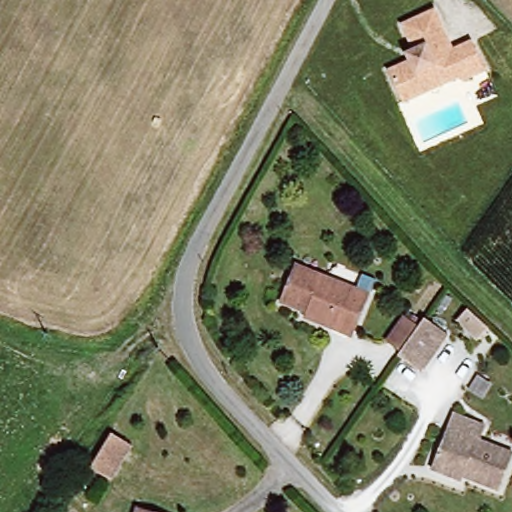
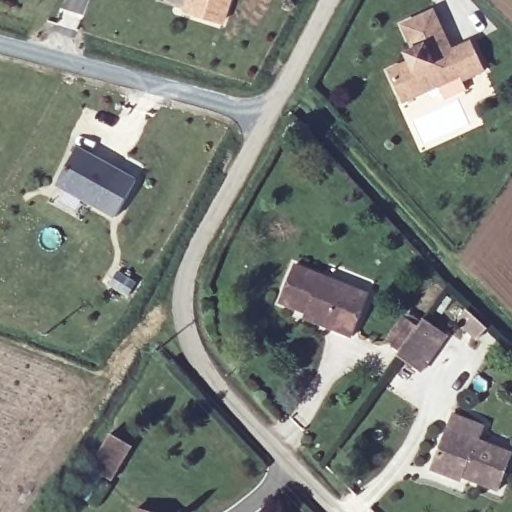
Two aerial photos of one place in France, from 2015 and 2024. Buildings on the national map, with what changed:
new [(180,11),(183,0),(230,0),(223,22),(180,11)]
unchanged [(460,76),(402,103),(388,73),(413,63),(416,54),(403,26),(435,13),(452,51),(472,42),(484,71),(462,81),(460,76)]
new [(137,179),(117,217),(56,185),(77,146),(137,179)]
unchanged [(326,320),(328,316),(284,299),(297,261),(374,292),(358,333),(326,320)]
unchanged [(450,335),(426,372),(402,356),(388,347),(407,319),(420,328),(427,318),(450,335)]
unchanged [(480,427),(475,439),(512,453),(497,492),(460,479),(431,469),(450,416),(480,427)]
unchanged [(133,447),(112,481),(90,467),(112,433),(133,447)]

